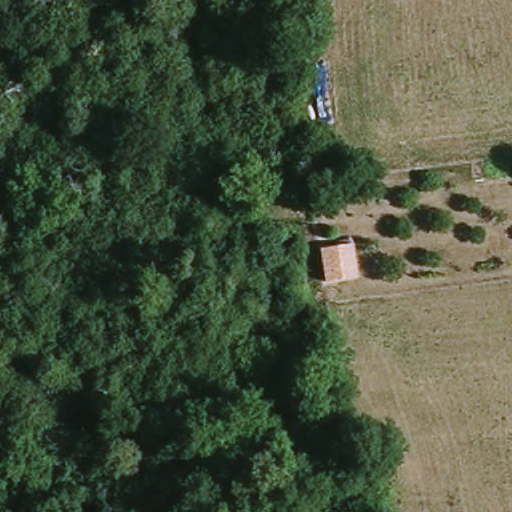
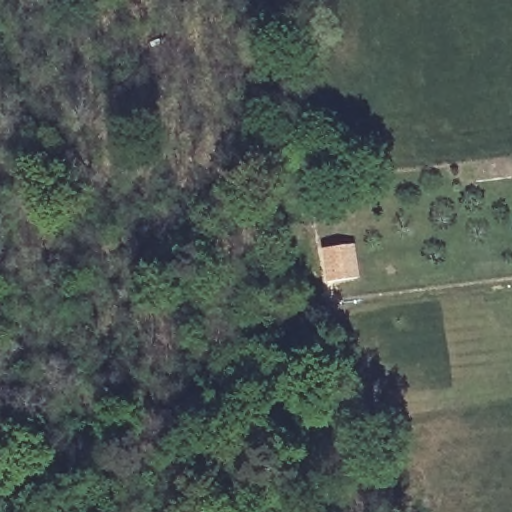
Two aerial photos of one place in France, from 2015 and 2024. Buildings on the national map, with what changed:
unchanged [(352,280),(337,283),(331,250),(347,248),(352,280)]

